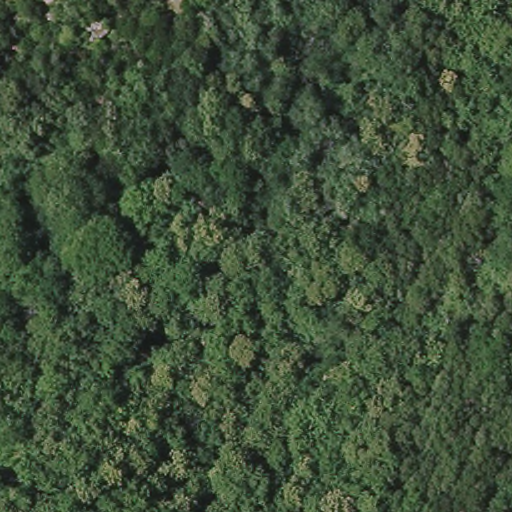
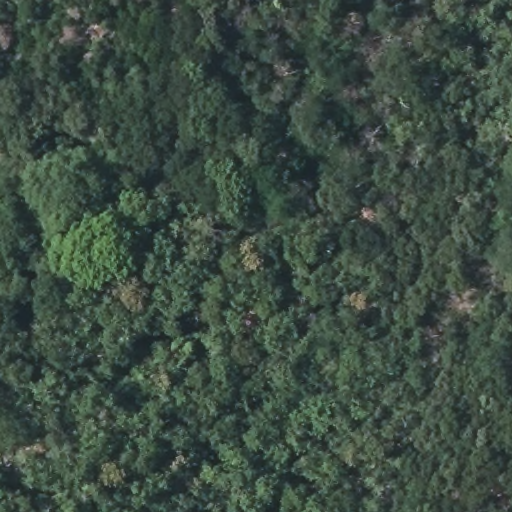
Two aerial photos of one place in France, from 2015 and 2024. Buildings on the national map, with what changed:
unchanged [(104,44),(114,57),(105,64),(93,50),(104,44)]

